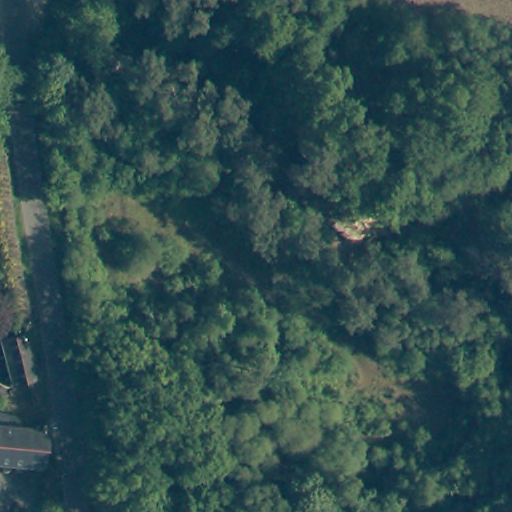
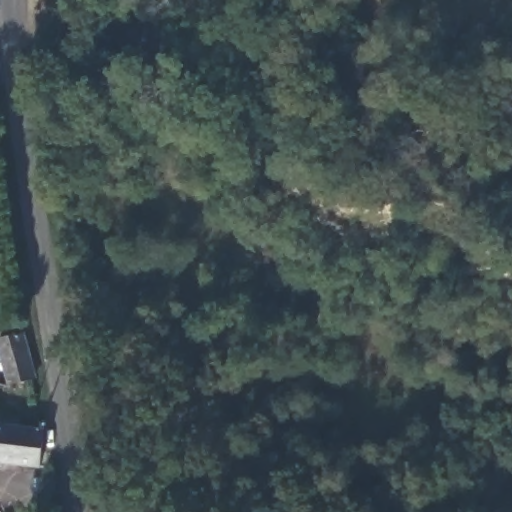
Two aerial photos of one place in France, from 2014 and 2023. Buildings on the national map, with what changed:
unchanged [(132,58),(129,73),(108,70),(110,54),(132,58)]
unchanged [(24,333),(35,377),(13,382),(2,339),(24,333)]
unchanged [(41,468),(0,462),(0,409),(46,426),(41,468)]

